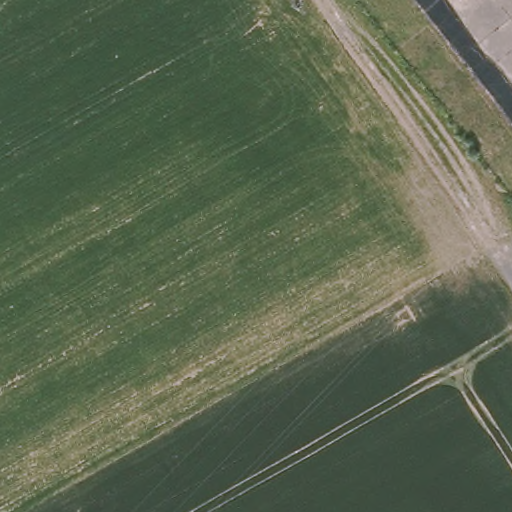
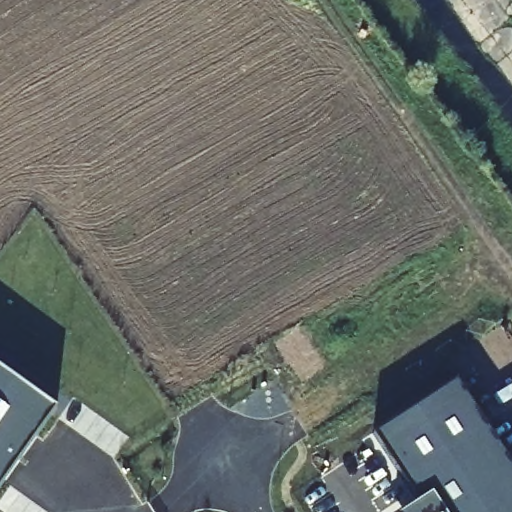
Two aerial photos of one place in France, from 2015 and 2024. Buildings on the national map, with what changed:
new [(0,486),(0,371),(55,410),(0,486)]
new [(512,465),(512,512),(403,512),(418,503),(374,436),(457,382),(512,465)]

